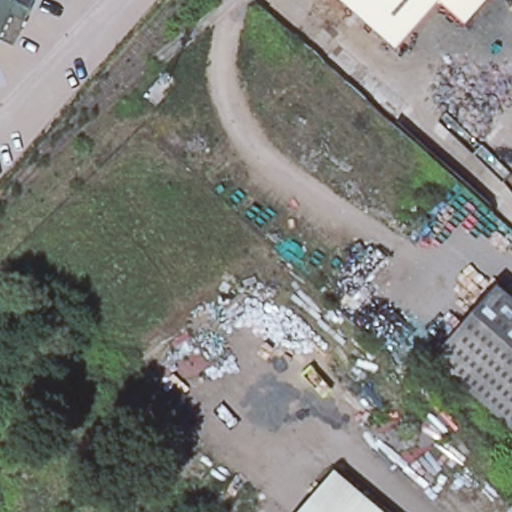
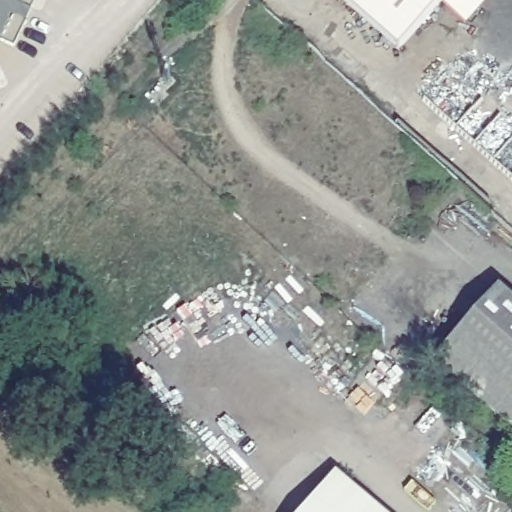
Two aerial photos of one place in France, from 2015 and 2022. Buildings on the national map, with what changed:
unchanged [(35,0),(15,45),(0,38),(0,0),(35,0)]
unchanged [(340,0),(445,0),(398,56),(340,0)]
unchanged [(499,292),(512,304),(512,435),(432,363),(499,292)]
unchanged [(338,471),(361,490),(342,512),(304,512),(338,471)]
unchanged [(361,490),(387,512),(342,512),(361,490)]

